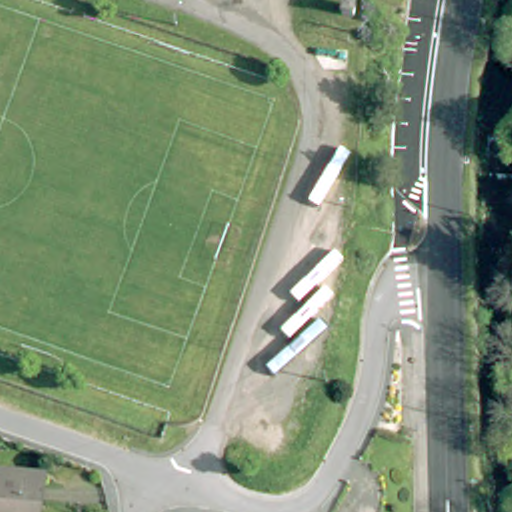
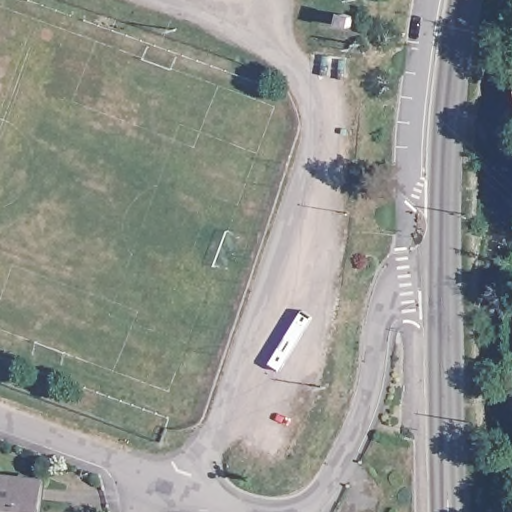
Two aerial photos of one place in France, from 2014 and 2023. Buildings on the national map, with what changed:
unchanged [(43,512),(0,512),(0,474),(35,475),(43,475),(43,512)]

